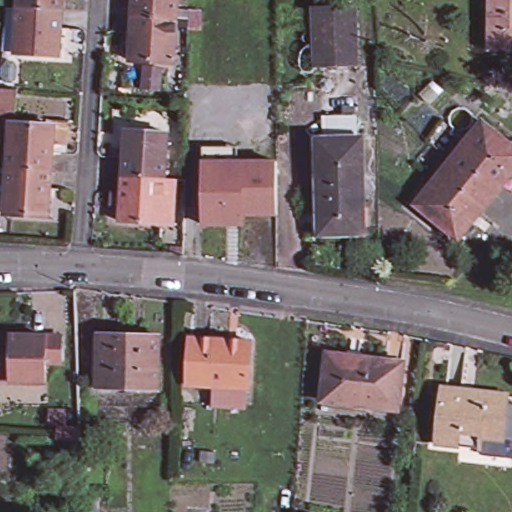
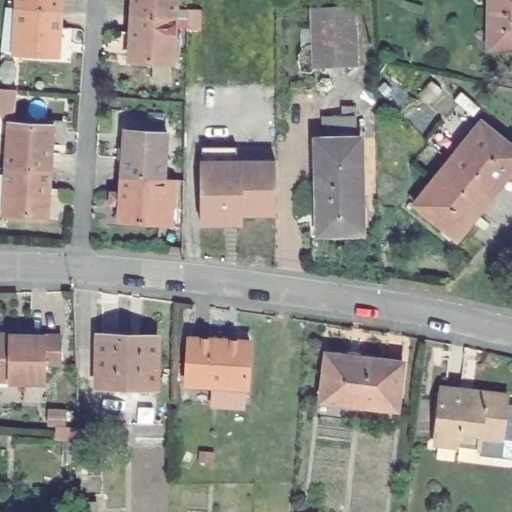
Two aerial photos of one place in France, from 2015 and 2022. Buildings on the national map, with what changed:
unchanged [(18,54),(22,9),(22,0),(64,0),(64,10),(60,56),(18,54)]
unchanged [(132,60),(135,15),(136,0),(180,0),(179,17),(175,64),(132,60)]
unchanged [(402,0),(402,31),(386,31),(386,0),(402,0)]
unchanged [(512,0),(512,43),(491,42),(492,0),(512,0)]
unchanged [(314,10),(356,8),(358,65),(317,65),(314,10)]
unchanged [(0,116),(0,96),(1,88),(20,89),(17,117),(0,116)]
unchanged [(324,115),(351,115),(351,130),(324,131),(324,115)]
unchanged [(13,123),(55,125),(53,171),(31,170),(10,169),(13,123)]
unchanged [(493,199),(451,163),(482,124),(512,148),(512,175),(493,199)]
unchanged [(122,220),(123,204),(113,204),(114,192),(124,192),(125,175),(127,130),(171,132),(167,177),(180,178),(177,224),(164,224),(122,220)]
unchanged [(357,136),(359,232),(314,234),(312,137),(357,136)]
unchanged [(229,227),(227,227),(202,227),(202,165),(202,150),(230,150),(237,150),(237,165),(277,165),(277,217),(242,217),(242,227),(229,227)]
unchanged [(493,199),(460,240),(417,206),(451,163),(493,199)]
unchanged [(50,216),(7,214),(10,169),(31,170),(53,171),(50,216)]
unchanged [(123,396),(123,377),(102,375),(104,323),(163,326),(161,380),(160,398),(123,396)]
unchanged [(0,376),(0,330),(64,335),(62,362),(47,362),(46,380),(0,376)]
unchanged [(213,410),(214,393),(188,391),(190,343),(250,345),(247,395),(247,412),(213,410)]
unchanged [(400,410),(327,401),(332,353),(405,362),(400,410)]
unchanged [(455,435),(455,439),(430,435),(435,378),(503,387),(502,395),(498,433),(477,431),(477,437),(455,435)]
unchanged [(502,395),(512,397),(512,449),(509,451),(480,448),(477,443),(477,437),(477,431),(498,433),(502,395)]
unchanged [(74,423),(54,422),(55,406),(75,407),(74,423)]
unchanged [(87,462),(70,461),(70,439),(87,440),(87,462)]

